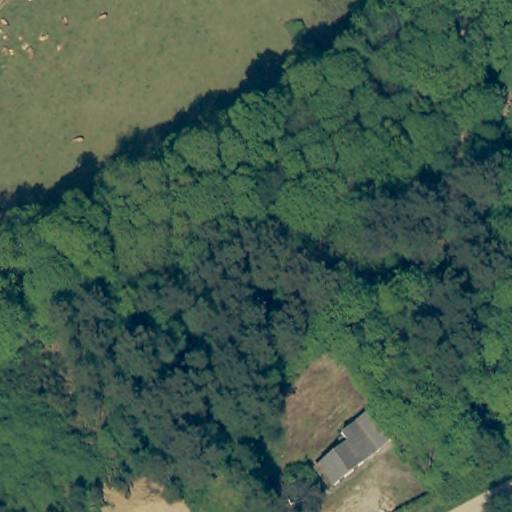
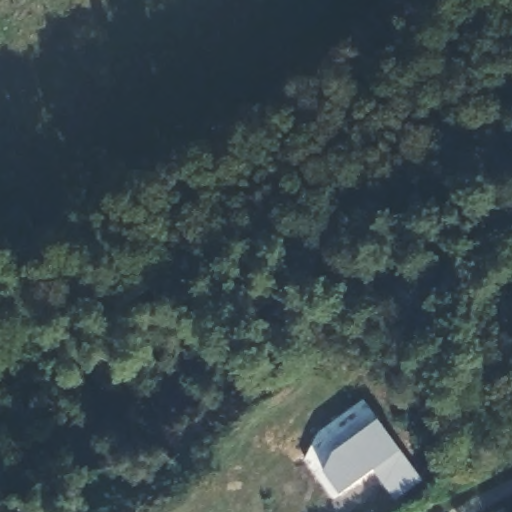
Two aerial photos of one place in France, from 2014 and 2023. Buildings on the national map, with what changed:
demolished [(351,441),(343,430),(366,413),(389,443),(332,485),(318,468),(351,441)]
new [(397,500),(375,469),(341,494),(323,472),(336,449),(378,419),(425,481),(397,500)]

